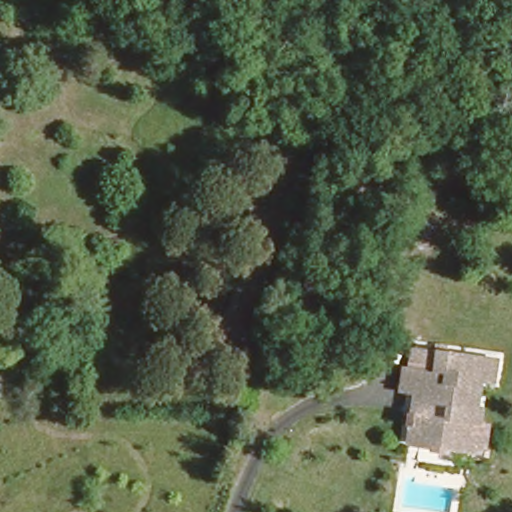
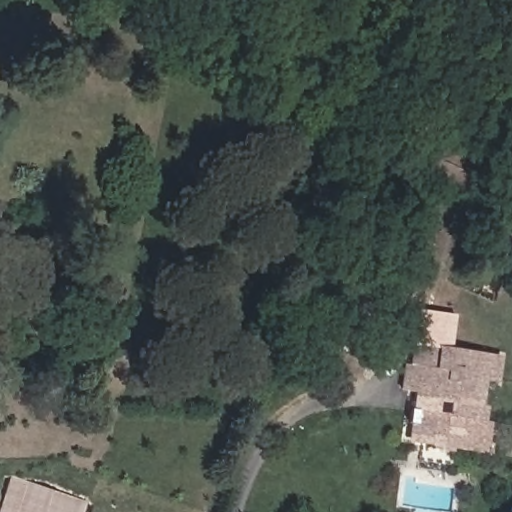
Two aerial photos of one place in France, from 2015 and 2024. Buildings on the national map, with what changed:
unchanged [(495,381),(481,379),(475,447),(399,442),(410,338),(500,351),(495,381)]
new [(0,503),(10,476),(86,502),(83,512),(0,512),(0,503)]

